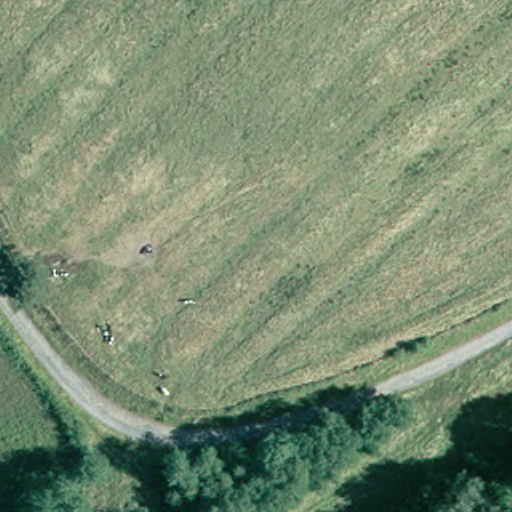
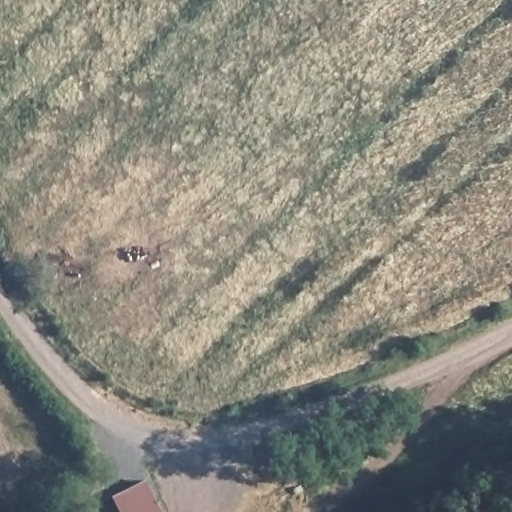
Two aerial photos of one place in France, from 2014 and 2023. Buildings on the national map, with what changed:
new [(162,512),(120,512),(112,495),(145,478),(162,512)]

